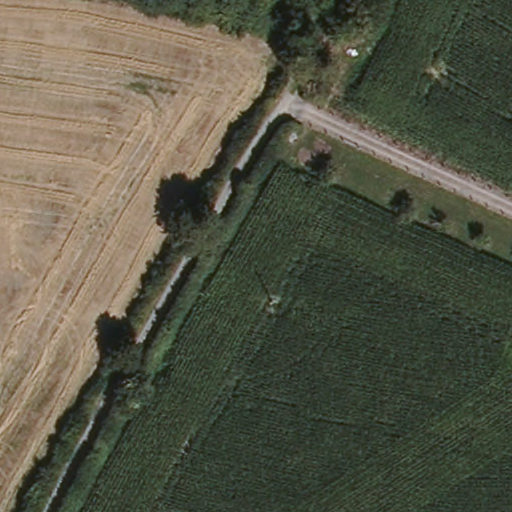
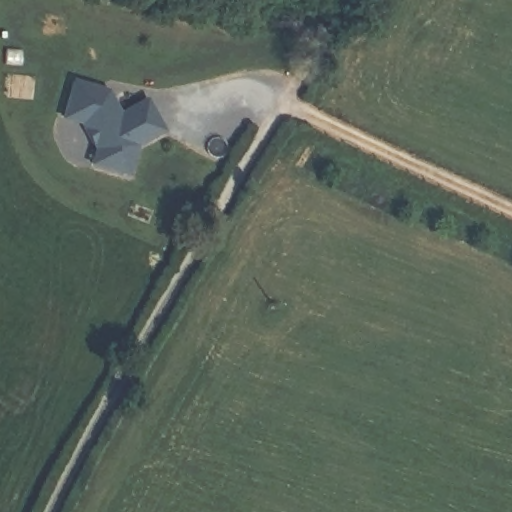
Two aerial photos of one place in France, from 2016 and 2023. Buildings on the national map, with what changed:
new [(76,79),(109,89),(112,94),(119,95),(117,102),(122,112),(149,98),(166,130),(139,144),(130,173),(94,162),(99,147),(83,120),(65,115),(76,79)]

